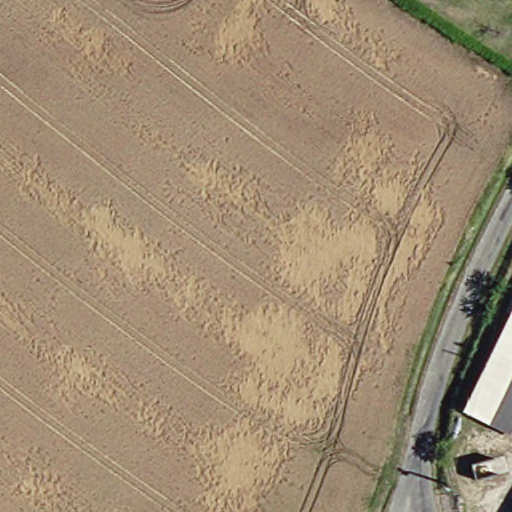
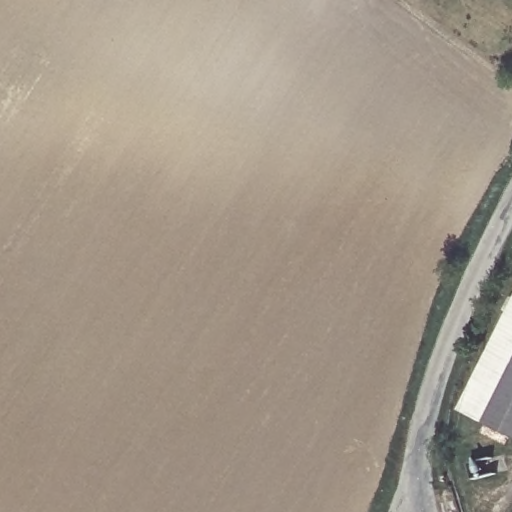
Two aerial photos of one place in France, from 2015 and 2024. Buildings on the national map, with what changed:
unchanged [(488,413),(512,367),(512,424),(488,413)]

